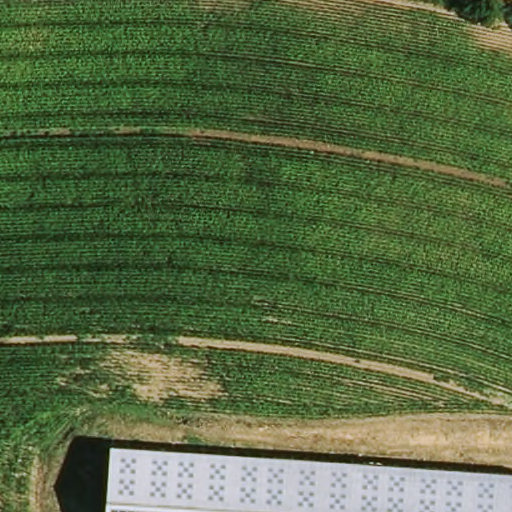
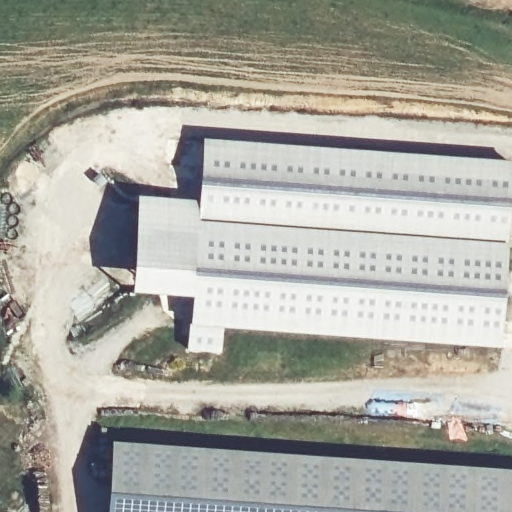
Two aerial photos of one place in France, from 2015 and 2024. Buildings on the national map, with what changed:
new [(512,163),(512,176),(499,350),(221,330),(219,355),(187,352),(188,327),(191,300),(129,296),(136,197),(198,200),(201,140),(512,163)]
unchanged [(107,512),(111,442),(512,471),(512,512),(107,512)]

